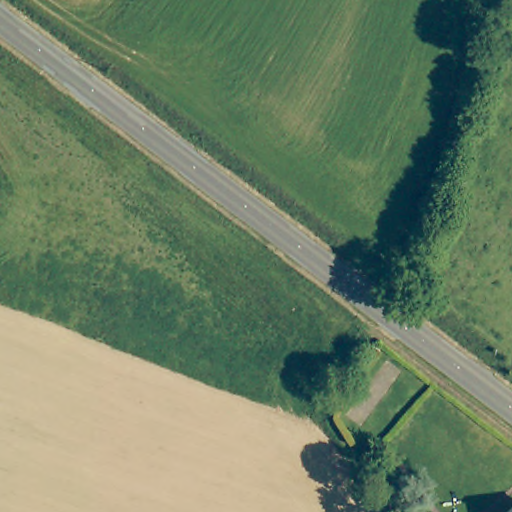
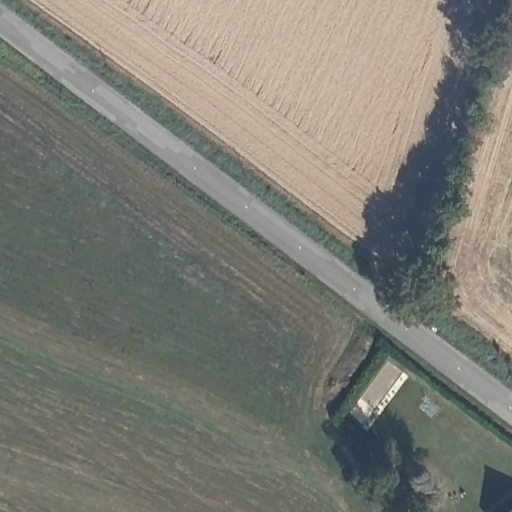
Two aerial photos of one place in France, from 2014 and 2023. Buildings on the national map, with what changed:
unchanged [(512,510),(512,512),(510,512),(512,510)]

